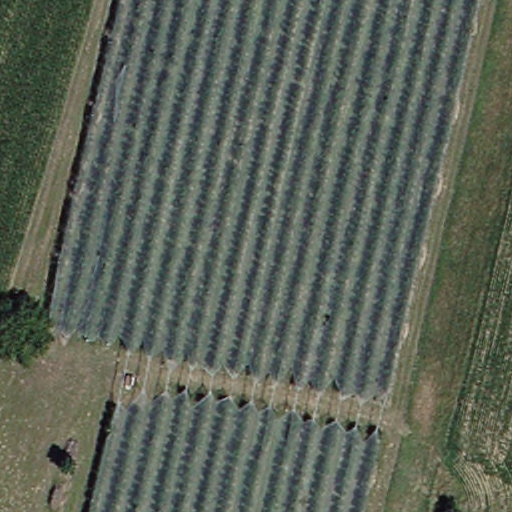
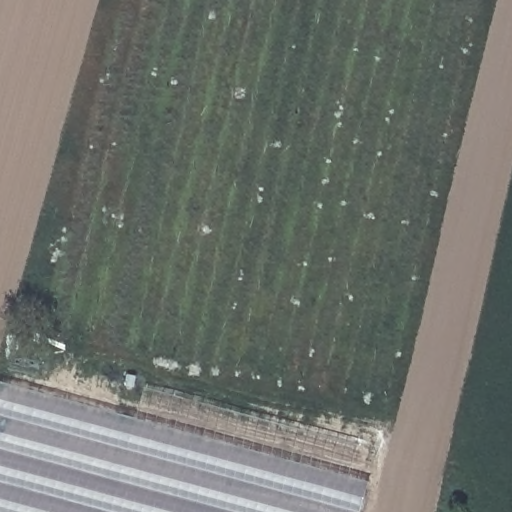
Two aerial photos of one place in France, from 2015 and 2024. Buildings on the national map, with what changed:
new [(1,381),(137,418),(146,386),(378,448),(362,512),(0,512),(0,385),(1,381)]

